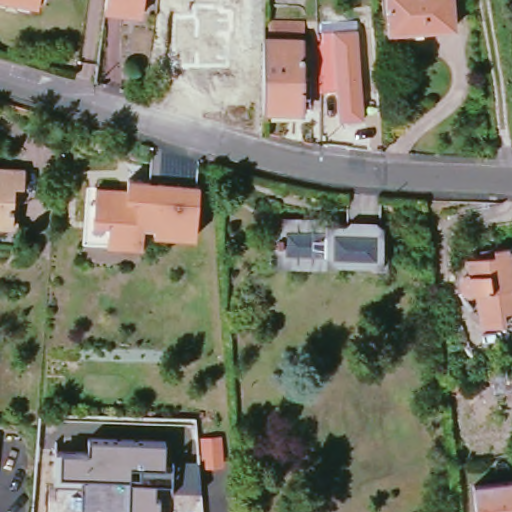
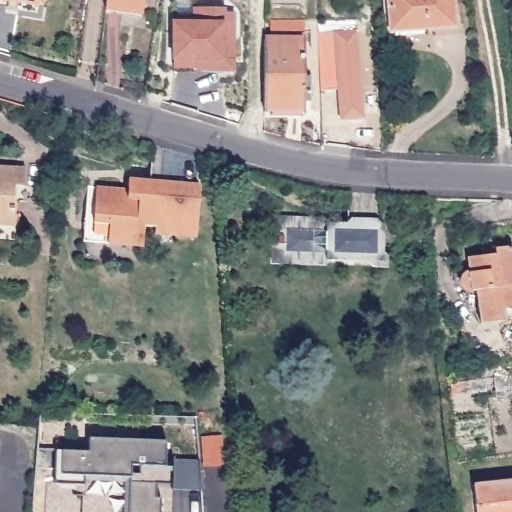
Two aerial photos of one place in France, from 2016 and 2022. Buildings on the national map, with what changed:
unchanged [(40,4),(14,0),(41,0),(40,4)]
unchanged [(108,0),(144,0),(142,13),(107,8),(108,0)]
unchanged [(390,0),(451,0),(453,24),(392,29),(390,0)]
new [(175,15),(196,15),(196,5),(226,5),(226,11),(235,11),(233,34),(230,34),(229,65),(197,65),(174,65),(175,56),(175,15)]
unchanged [(342,121),(338,90),(321,92),(320,35),(360,34),(367,120),(342,121)]
unchanged [(265,38),(305,38),(305,109),(265,108),(265,38)]
unchanged [(28,188),(18,187),(15,228),(0,227),(0,168),(30,170),(28,188)]
unchanged [(158,232),(158,225),(147,224),(145,244),(95,240),(99,200),(90,199),(92,184),(132,188),(133,176),(204,183),(199,236),(158,232)]
unchanged [(298,260),(270,259),(272,222),(300,223),(380,226),(378,263),(350,261),(298,260)]
unchanged [(477,290),(475,290),(472,290),(468,290),(465,289),(463,287),(462,285),(460,283),(461,280),(462,277),(465,273),(469,272),(467,257),(496,254),(495,249),(512,247),(512,309),(505,310),(505,321),(481,324),(477,290)]
unchanged [(206,470),(204,439),(226,437),(227,466),(206,470)]
unchanged [(175,486),(157,487),(157,500),(162,501),(162,512),(131,512),(132,479),(85,477),(84,486),(57,484),(58,453),(92,454),(92,439),(167,443),(167,464),(175,465),(176,459),(199,461),(202,491),(175,491),(175,486)]
unchanged [(512,482),(512,512),(477,512),(475,486),(512,482)]

